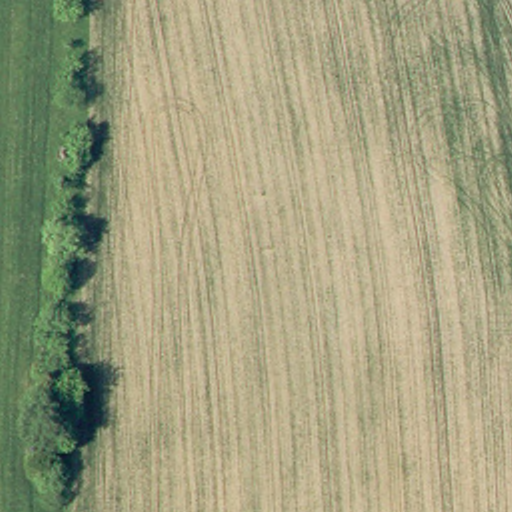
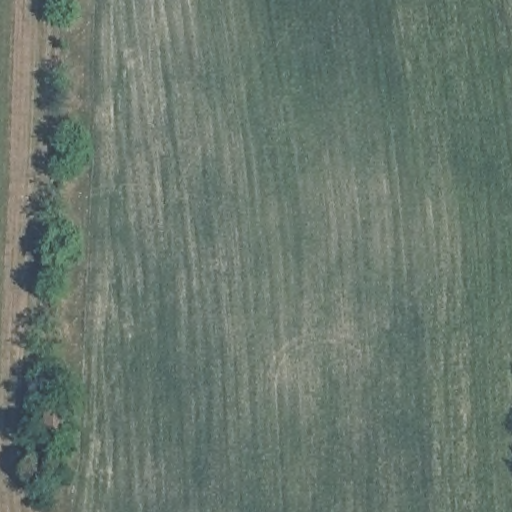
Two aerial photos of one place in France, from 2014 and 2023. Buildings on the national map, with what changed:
unchanged [(60,436),(45,436),(48,391),(63,392),(60,436)]

